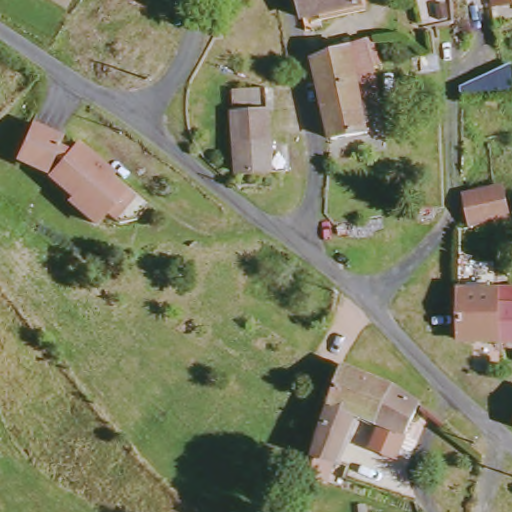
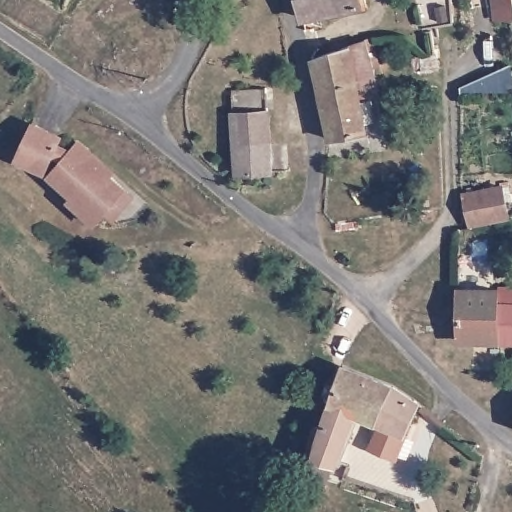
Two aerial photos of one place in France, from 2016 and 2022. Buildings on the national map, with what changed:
unchanged [(308,20),(304,0),(355,0),(358,8),(308,20)]
unchanged [(428,31),(420,0),(447,0),(447,27),(428,31)]
unchanged [(491,9),(490,0),(511,0),(512,6),(491,9)]
unchanged [(370,41),(384,94),(366,100),(373,134),(330,142),(313,55),(364,42),(370,41)]
unchanged [(229,89),(272,84),(274,105),(277,166),(266,167),(267,180),(229,182),(229,89)]
unchanged [(116,221),(109,215),(97,228),(70,200),(71,199),(52,176),(62,160),(54,156),(45,175),(16,161),(31,125),(63,139),(59,146),(71,152),(78,141),(127,194),(134,202),(116,221)]
unchanged [(470,231),(462,197),(500,189),(509,220),(470,231)]
unchanged [(456,343),(457,288),(500,289),(499,306),(512,305),(512,345),(500,344),(456,343)]
unchanged [(399,463),(372,453),(382,428),(357,418),(337,468),(334,467),(328,485),(312,477),(316,461),(312,457),(341,366),(395,387),(420,406),(399,463)]

